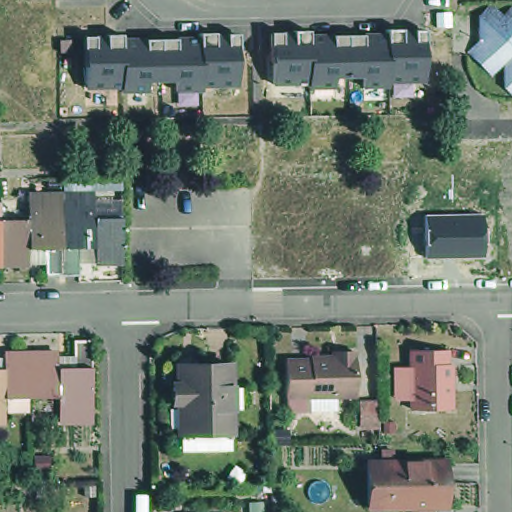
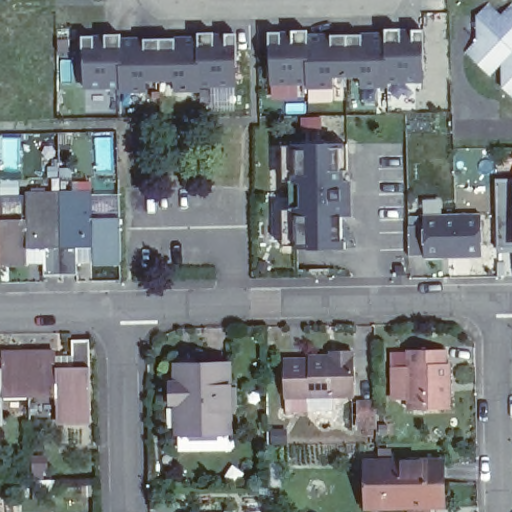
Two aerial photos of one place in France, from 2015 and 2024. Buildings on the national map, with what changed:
new [(490,1),(500,12),(511,0),(512,1),(512,101),(500,89),(500,68),(491,76),(464,54),(475,38),(475,13),(490,1)]
demolished [(512,13),(512,84),(507,84),(506,62),(482,61),(482,14),(512,13)]
unchanged [(309,31),(310,34),(386,34),(385,30),(425,30),(423,83),(388,84),(388,88),(360,88),(360,80),(335,81),(333,89),(307,89),(307,84),(272,86),(270,33),(309,31)]
unchanged [(122,34),(122,39),(200,38),(200,34),(238,34),(237,88),(202,88),(202,92),(171,92),(172,84),(147,84),(146,94),(120,94),(120,89),(85,90),(82,36),(122,34)]
new [(351,216),(341,217),(342,253),(315,254),(308,249),(285,249),(283,144),(350,144),(351,216)]
new [(495,253),(495,180),(512,179),(512,252),(495,253)]
unchanged [(3,213),(33,212),(33,190),(63,189),(65,269),(47,269),(46,243),(30,243),(30,261),(5,262),(3,213)]
unchanged [(63,189),(92,189),(93,211),(122,210),(123,259),(95,259),(95,241),(80,242),(80,269),(65,269),(63,189)]
unchanged [(5,262),(0,262),(0,213),(3,213),(5,262)]
unchanged [(481,214),(482,257),(424,258),(424,244),(423,229),(423,215),(481,214)]
unchanged [(95,415),(65,416),(65,391),(33,393),(33,381),(32,348),(60,347),(60,363),(77,363),(76,337),(89,337),(94,336),(95,342),(95,353),(95,415)]
unchanged [(448,403),(406,402),(406,392),(391,392),(390,363),(406,363),(406,361),(405,345),(444,345),(444,361),(447,361),(448,403)]
unchanged [(312,408),(290,408),(290,394),(286,394),(286,356),(310,356),(310,353),(330,354),(330,348),(337,347),(353,347),(354,393),(335,393),(335,407),(312,408)]
unchanged [(33,393),(3,394),(3,418),(0,418),(0,364),(6,364),(6,349),(32,348),(33,381),(33,393)]
unchanged [(183,430),(182,423),(182,395),(176,389),(176,379),(182,374),(181,363),(181,357),(197,357),(230,357),(231,381),(236,388),(236,395),(231,400),(231,414),(231,431),(183,430)]
unchanged [(411,502),(380,502),(369,502),(368,457),(379,457),(444,456),(445,502),(432,502),(432,512),(411,512),(411,502)]
unchanged [(208,507),(226,507),(226,512),(208,512),(208,507)]

